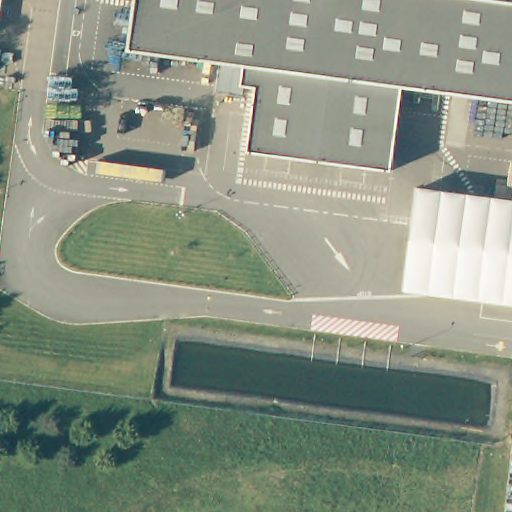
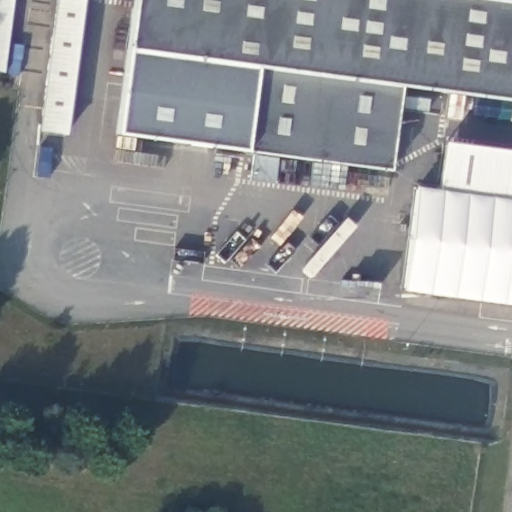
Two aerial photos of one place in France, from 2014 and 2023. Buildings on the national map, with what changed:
new [(6,72),(0,72),(0,0),(14,0),(6,72)]
new [(68,135),(41,131),(57,0),(87,0),(68,135)]
unchanged [(274,70),(130,51),(137,0),(512,0),(512,102),(418,89),(274,70)]
new [(120,132),(130,51),(274,70),(263,154),(120,132)]
unchanged [(418,89),(407,173),(263,154),(274,70),(418,89)]
new [(512,151),(512,199),(440,190),(447,142),(512,151)]
unchanged [(416,187),(512,200),(512,305),(403,290),(416,187)]

